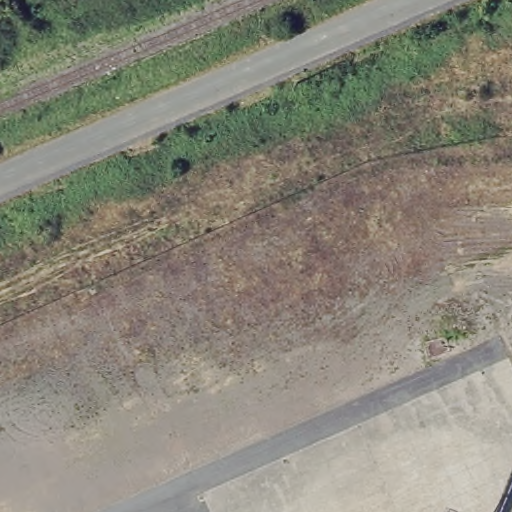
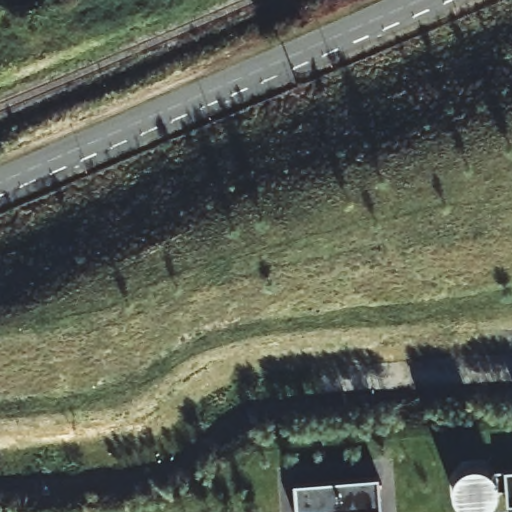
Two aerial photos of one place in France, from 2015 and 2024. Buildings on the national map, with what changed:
new [(503,506),(500,475),(512,473),(512,505),(503,506)]
new [(375,512),(291,512),(289,487),(372,480),(375,512)]

